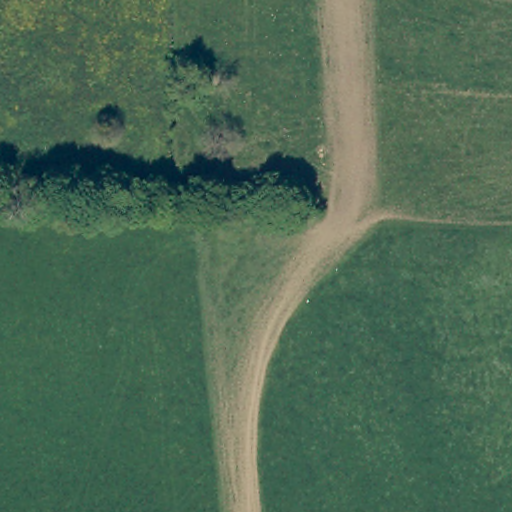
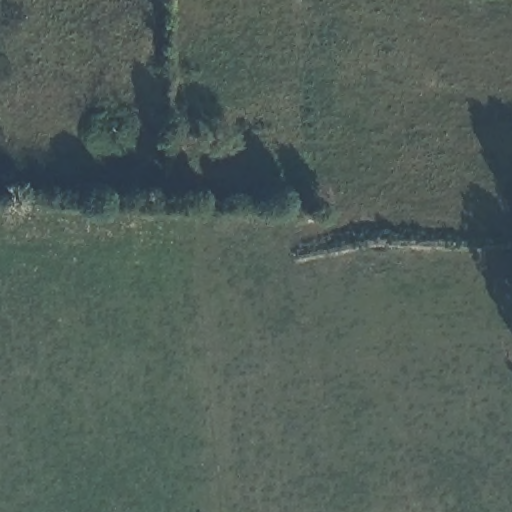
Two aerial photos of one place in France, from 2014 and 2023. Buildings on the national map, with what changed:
[]

